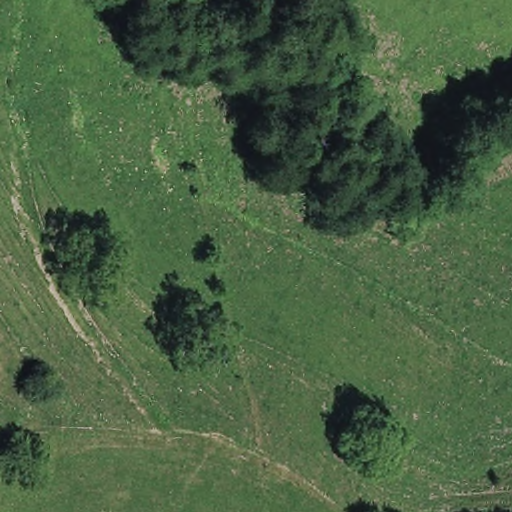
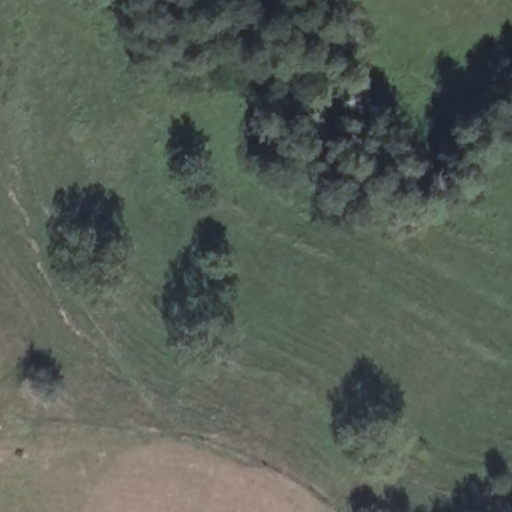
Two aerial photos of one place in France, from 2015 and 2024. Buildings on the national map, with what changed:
[]

